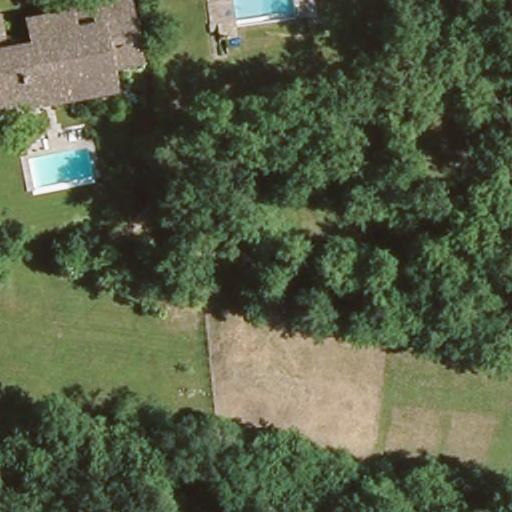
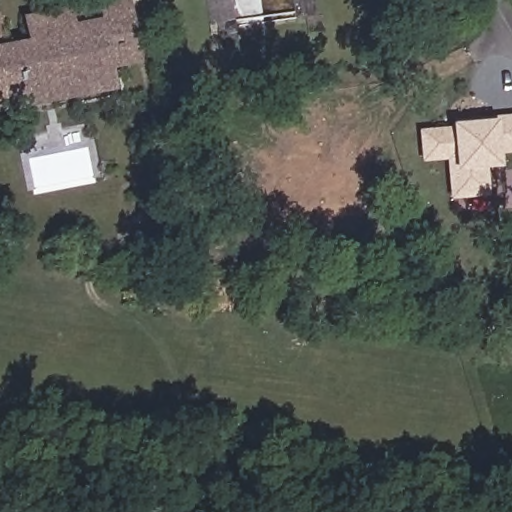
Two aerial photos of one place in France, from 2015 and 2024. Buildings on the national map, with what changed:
unchanged [(7,13),(10,36),(42,34),(40,11),(75,7),(74,0),(137,0),(144,50),(146,64),(113,68),(115,81),(60,90),(0,99),(0,14),(7,13)]
unchanged [(420,0),(434,0),(429,3),(423,6),(420,0)]
unchanged [(116,93),(1,110),(0,99),(60,90),(115,81),(116,93)]
new [(472,122),(498,121),(512,120),(512,152),(501,153),(502,167),(488,168),(489,195),(456,197),(453,157),(428,158),(427,132),(460,130),(459,121),(472,122)]

